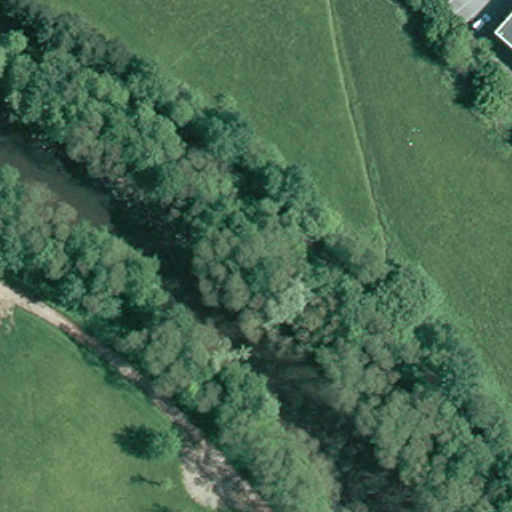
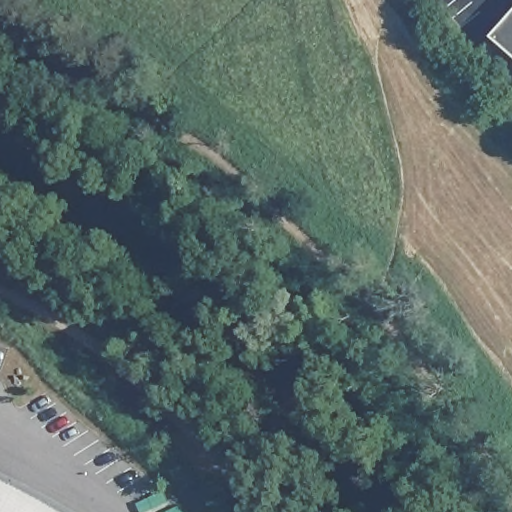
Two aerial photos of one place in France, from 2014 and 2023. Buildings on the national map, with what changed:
unchanged [(498,35),(512,20),(512,48),(498,35)]
new [(0,471),(23,482),(50,496),(76,512),(0,512),(0,471)]

